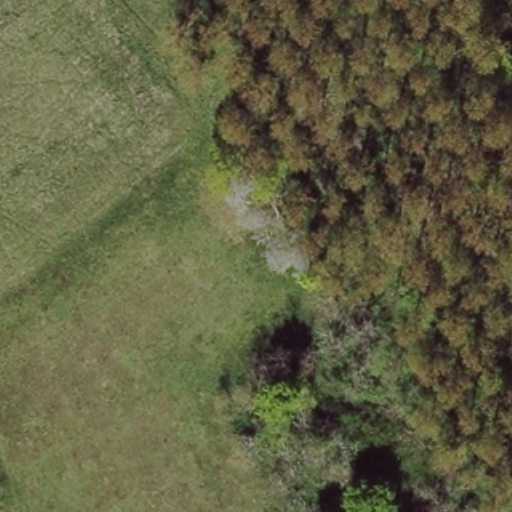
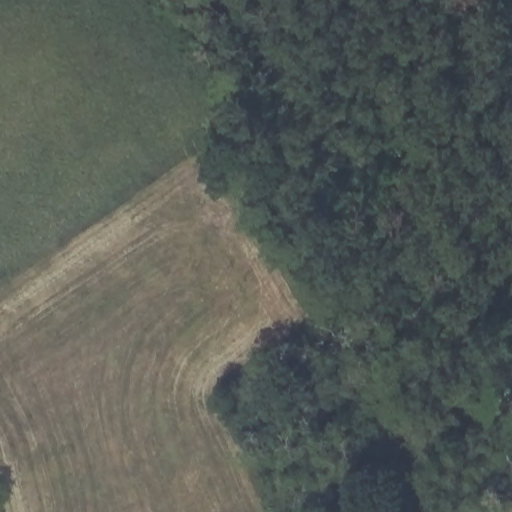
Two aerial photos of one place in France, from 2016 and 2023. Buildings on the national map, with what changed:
[]

